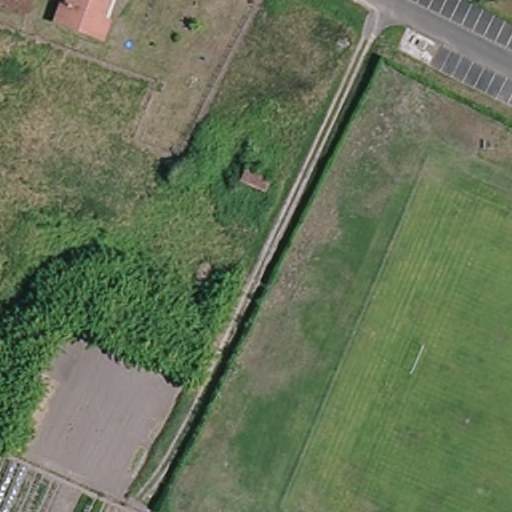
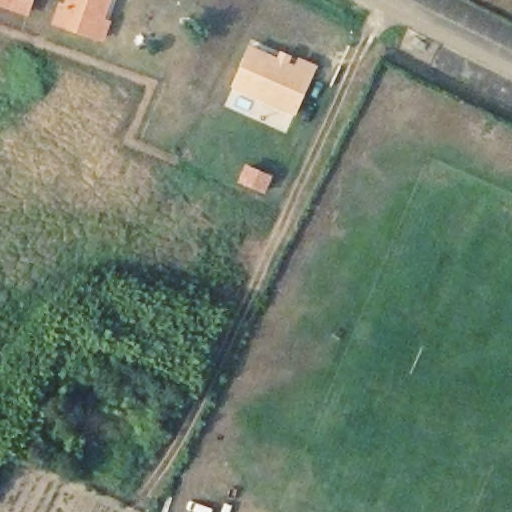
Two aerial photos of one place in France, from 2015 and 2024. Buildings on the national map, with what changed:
unchanged [(25,15),(0,6),(0,0),(31,0),(25,15)]
unchanged [(61,8),(66,10),(70,0),(108,0),(101,22),(107,25),(101,41),(55,25),(61,8)]
new [(230,85),(250,44),(277,56),(280,50),(291,55),(288,61),(295,65),(298,55),(316,64),(295,113),(230,85)]
unchanged [(263,192),(241,184),(246,171),(268,180),(263,192)]

